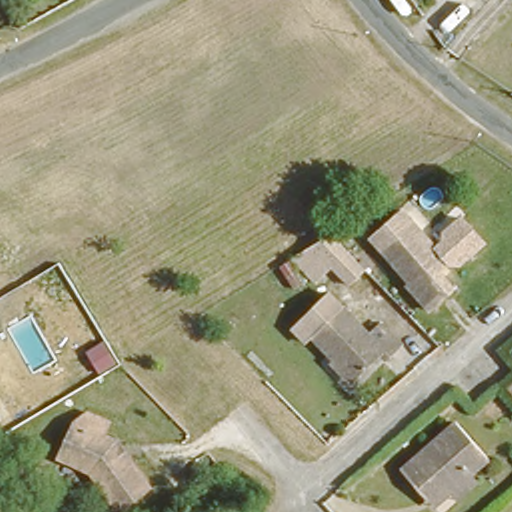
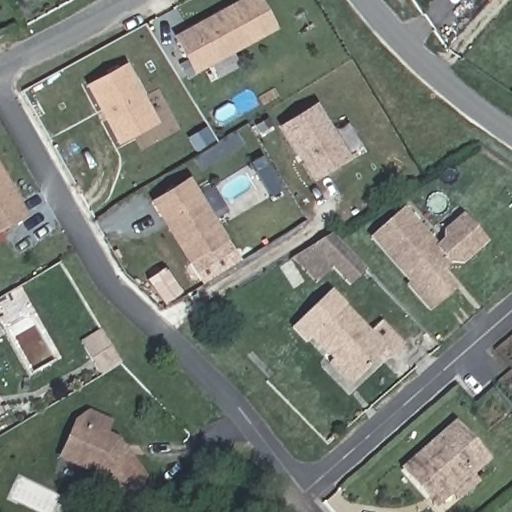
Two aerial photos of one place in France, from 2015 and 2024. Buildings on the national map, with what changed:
new [(245,0),(262,0),(277,27),(197,72),(178,37),(245,0)]
new [(127,65),(158,121),(121,141),(91,85),(127,65)]
new [(319,106),(352,159),(317,180),(284,127),(319,106)]
new [(0,234),(0,166),(29,218),(0,234)]
new [(190,179),(227,239),(191,262),(154,201),(190,179)]
unchanged [(428,271),(444,288),(420,310),(400,287),(402,284),(362,238),(393,211),(426,248),(435,240),(435,232),(452,217),(474,241),(450,262),(438,262),(428,271)]
new [(332,235),(368,270),(352,285),(334,267),(318,283),(293,258),(313,246),(332,235)]
new [(167,269),(184,292),(169,303),(152,280),(167,269)]
unchanged [(355,333),(366,322),(390,345),(378,358),(373,352),(343,380),(300,336),(328,306),(355,333)]
unchanged [(99,421),(94,434),(105,437),(141,483),(110,507),(81,469),(50,456),(65,420),(77,412),(99,421)]
unchanged [(414,501),(387,471),(442,423),(475,460),(459,475),(466,483),(445,502),(438,494),(421,509),(414,501)]

